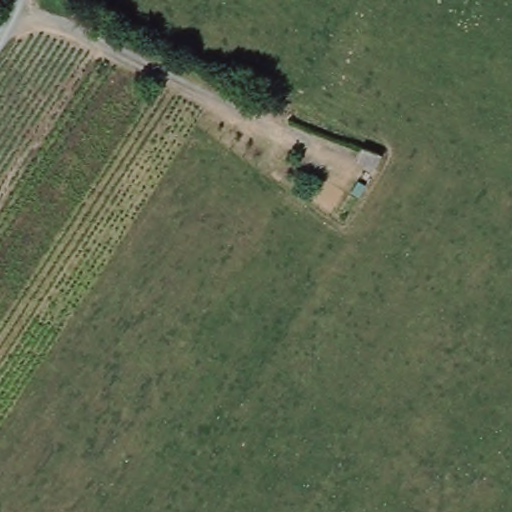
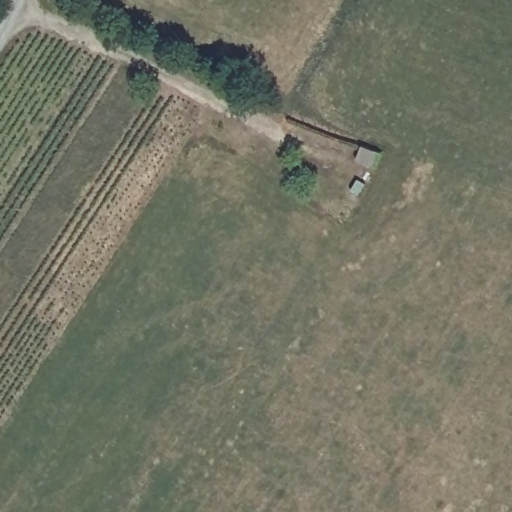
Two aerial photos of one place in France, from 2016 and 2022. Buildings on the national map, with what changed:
unchanged [(357,159),(362,141),(383,150),(377,165),(357,159)]

